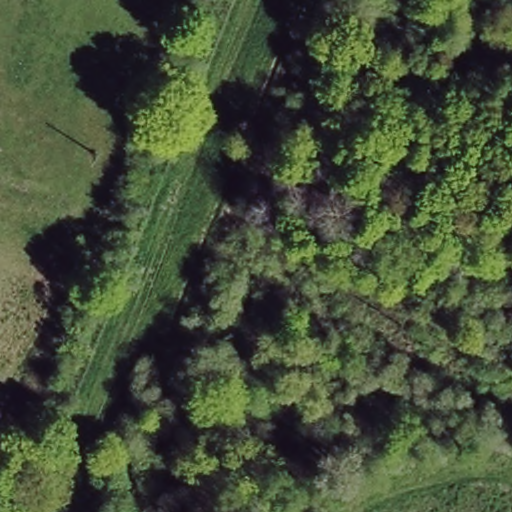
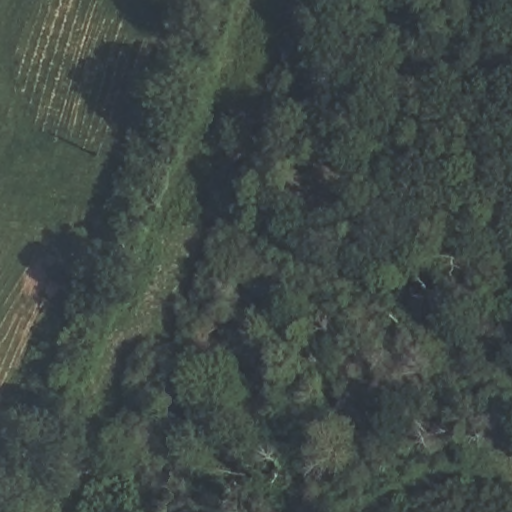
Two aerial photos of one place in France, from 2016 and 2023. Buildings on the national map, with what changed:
[]

